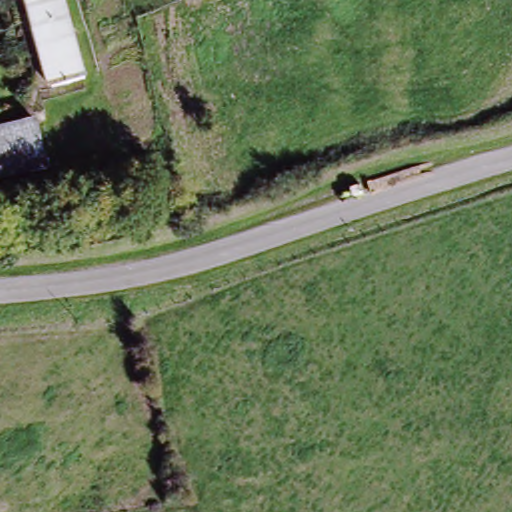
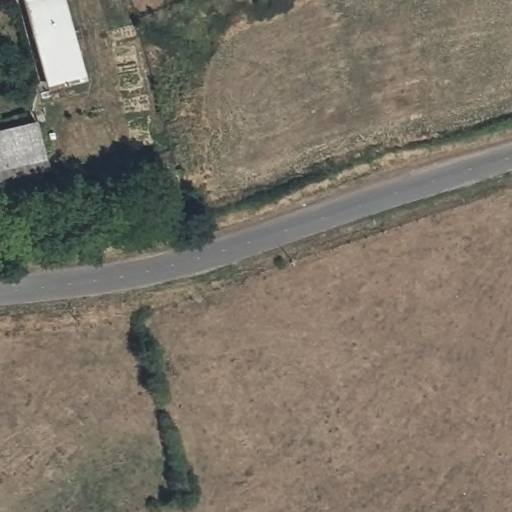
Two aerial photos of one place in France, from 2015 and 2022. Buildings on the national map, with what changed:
unchanged [(53,91),(42,41),(36,0),(71,0),(87,83),(75,86),(53,91)]
unchanged [(53,163),(0,174),(0,130),(46,121),(53,163)]

